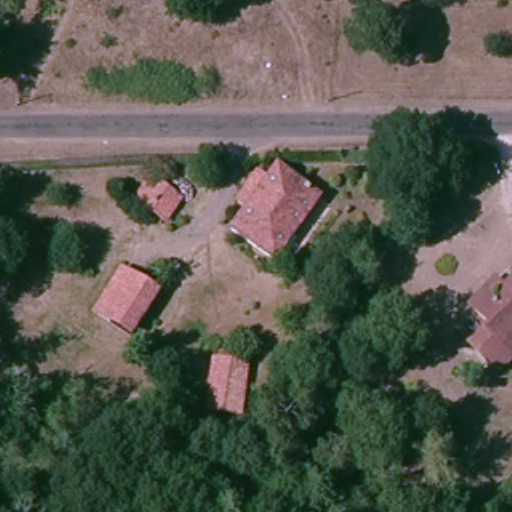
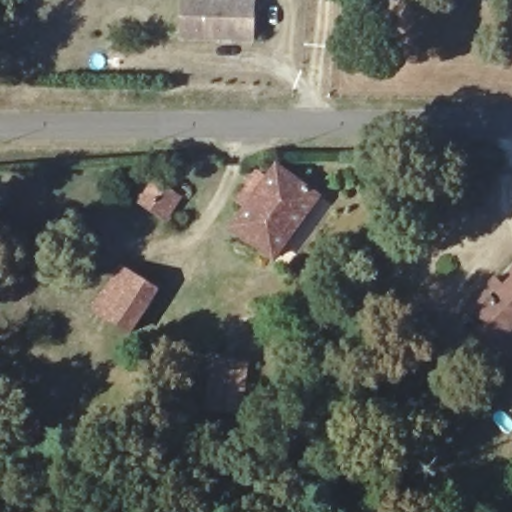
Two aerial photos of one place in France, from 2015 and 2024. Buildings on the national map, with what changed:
new [(181,39),(181,0),(257,0),(255,41),(181,39)]
unchanged [(320,195),(275,257),(230,225),(275,162),(320,195)]
unchanged [(145,177),(177,194),(166,215),(135,197),(145,177)]
unchanged [(133,333),(110,318),(94,309),(123,265),(138,275),(161,290),(133,333)]
unchanged [(475,351),(492,335),(496,330),(478,312),(470,306),(498,277),(510,289),(512,288),(512,357),(496,372),(475,351)]
unchanged [(215,356),(244,360),(238,409),(210,407),(215,356)]
unchanged [(149,399),(190,393),(192,412),(151,419),(149,399)]

